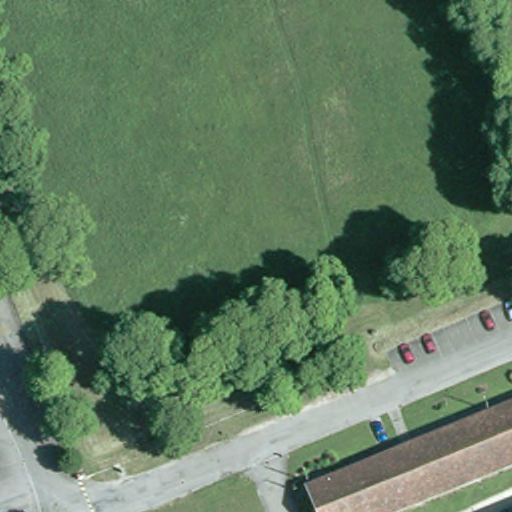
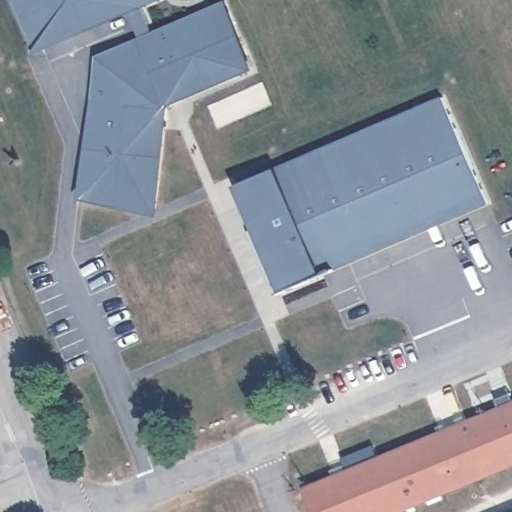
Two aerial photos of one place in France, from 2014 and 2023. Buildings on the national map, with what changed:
new [(159,216),(81,200),(97,57),(140,39),(130,13),(34,53),(13,0),(157,0),(143,6),(152,32),(227,1),(255,71),(166,107),(159,216)]
new [(256,229),(238,184),(278,168),(444,95),(489,205),(323,275),(284,291),(274,294),(249,233),(256,229)]
unchanged [(406,512),(316,512),(308,491),(512,407),(512,469),(406,512)]

